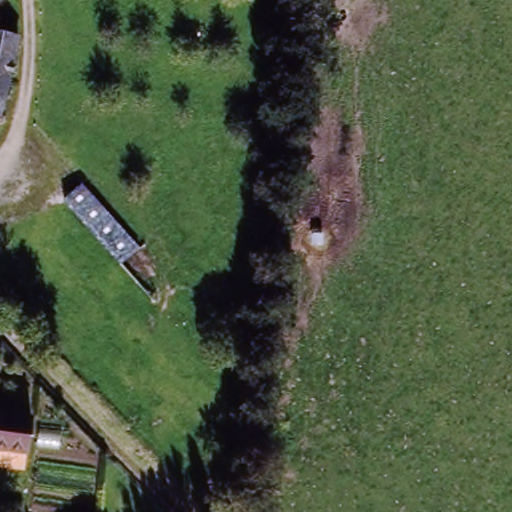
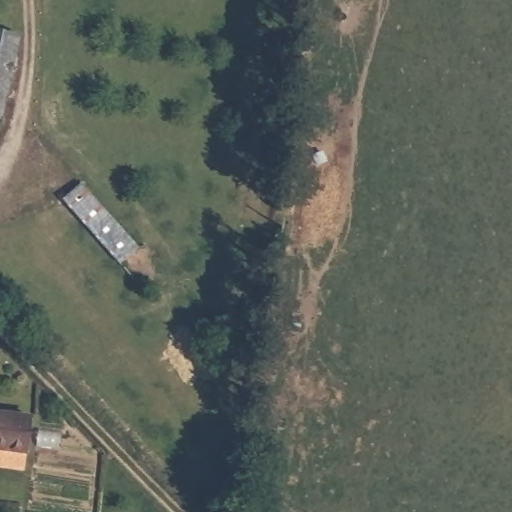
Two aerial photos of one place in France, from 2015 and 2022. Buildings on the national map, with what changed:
unchanged [(22,37),(2,120),(0,119),(0,33),(22,37)]
unchanged [(62,200),(78,186),(134,249),(120,262),(62,200)]
unchanged [(34,409),(31,440),(0,438),(0,407),(34,409)]

